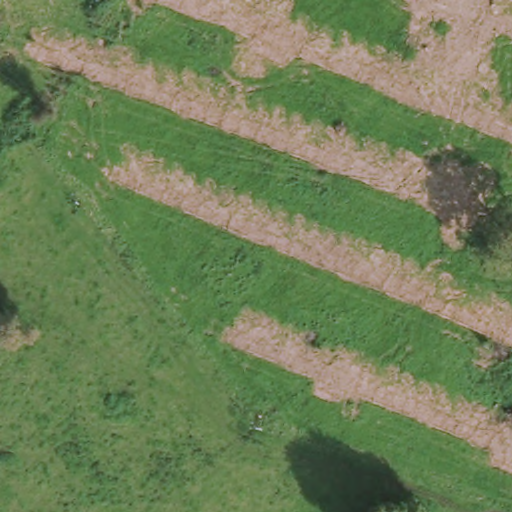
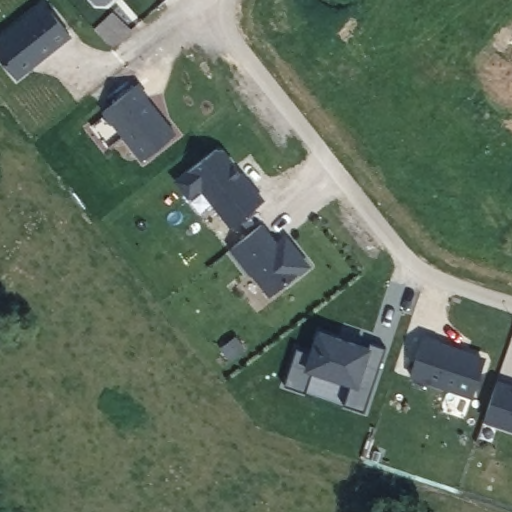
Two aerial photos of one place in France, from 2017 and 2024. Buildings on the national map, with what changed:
new [(107,3),(96,3),(93,0),(110,0),(107,3)]
new [(0,39),(46,3),(72,35),(17,78),(4,61),(0,57),(0,39)]
new [(171,126),(167,128),(172,135),(144,158),(106,110),(137,85),(171,126)]
new [(192,195),(184,184),(195,175),(191,170),(222,146),(236,164),(232,168),(237,175),(242,171),(264,200),(230,227),(200,189),(192,195)]
new [(300,260),(281,279),(285,283),(268,296),(231,249),(264,223),(276,239),(285,240),(300,260)]
new [(371,349),(372,344),(385,348),(364,411),(344,404),(351,384),(311,371),(304,391),(285,385),(297,348),(310,352),(317,331),(369,348),(371,349)]
new [(486,356),(472,398),(410,377),(424,335),(486,356)]
new [(484,421),(497,379),(512,384),(512,430),(484,421)]

